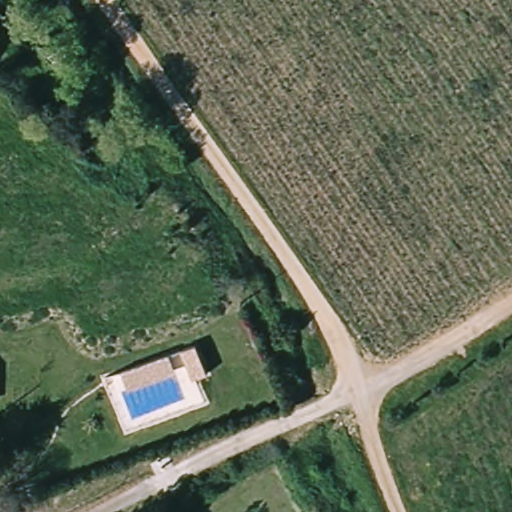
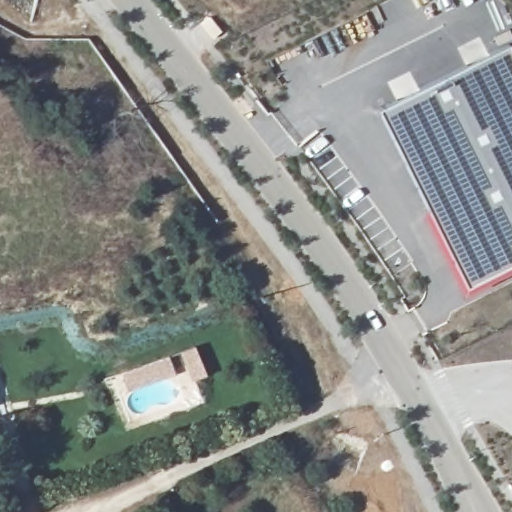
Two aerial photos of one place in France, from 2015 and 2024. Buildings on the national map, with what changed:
new [(377,109),(508,44),(512,52),(512,271),(462,295),(421,213),(427,210),(377,109)]

